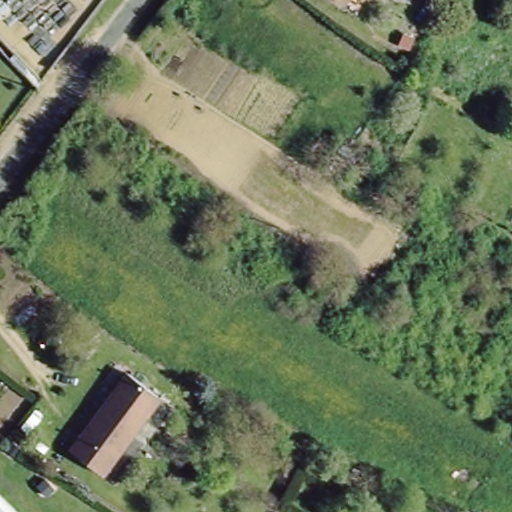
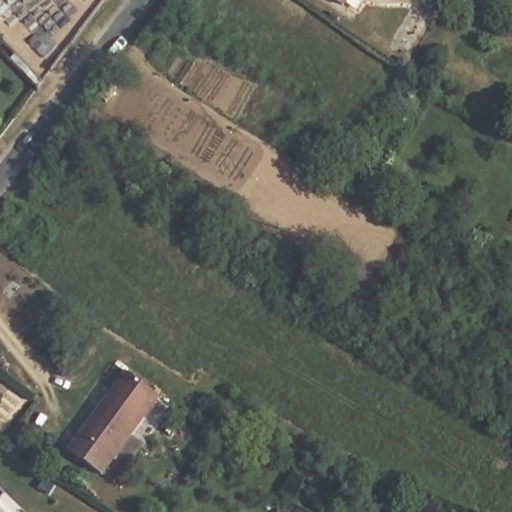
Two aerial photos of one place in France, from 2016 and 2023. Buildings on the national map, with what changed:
unchanged [(162,413),(102,489),(72,466),(129,387),(162,413)]

